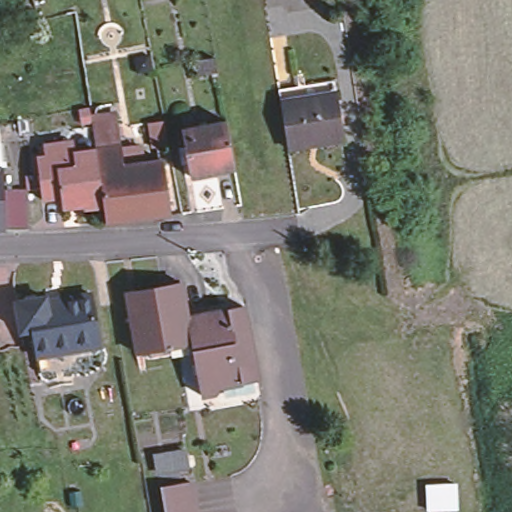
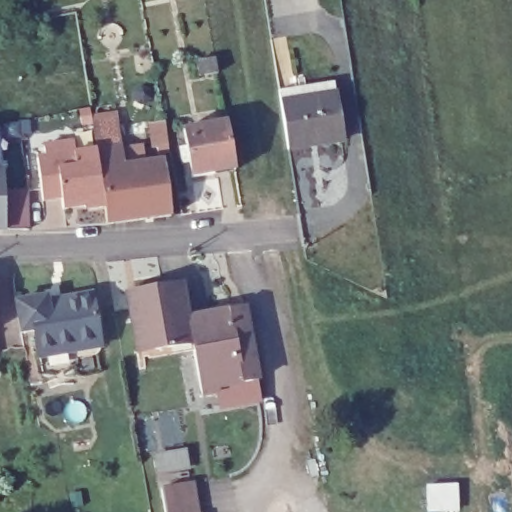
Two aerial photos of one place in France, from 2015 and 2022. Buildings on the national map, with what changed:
unchanged [(215,58),(218,73),(198,76),(196,61),(215,58)]
unchanged [(288,152),(281,106),(279,95),(335,85),(336,97),(344,143),(288,152)]
unchanged [(159,156),(166,211),(101,220),(100,202),(89,203),(86,205),(85,205),(81,204),(80,201),(73,202),(56,203),(55,193),(50,194),(37,195),(32,154),(40,153),(39,143),(38,139),(62,136),(60,128),(65,122),(88,119),(88,117),(112,113),(116,141),(120,161),(159,156)]
unchanged [(227,121),(236,170),(206,175),(192,177),(183,129),(197,126),(227,121)]
unchanged [(27,225),(5,226),(0,226),(0,161),(5,161),(5,184),(27,183),(27,225)]
unchanged [(181,286),(187,320),(191,346),(135,354),(125,294),(181,286)]
unchanged [(32,330),(20,332),(15,302),(45,297),(47,310),(52,309),(55,308),(53,304),(56,299),(70,296),(90,293),(99,346),(79,350),(73,351),(60,354),(38,358),(36,351),(32,330)]
unchanged [(226,390),(218,391),(213,396),(205,397),(200,397),(192,352),(233,346),(226,314),(229,313),(244,311),(255,371),(256,385),(226,390)]
unchanged [(226,314),(233,346),(192,352),(191,346),(187,320),(226,314)]
unchanged [(181,454),(183,471),(152,474),(150,457),(181,454)]
unchanged [(198,512),(164,512),(160,488),(193,483),(198,512)]

